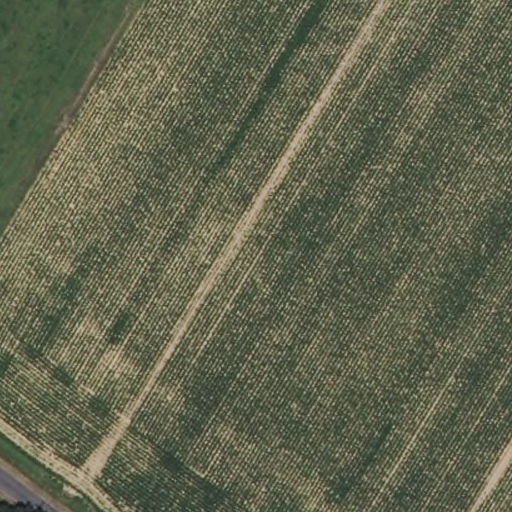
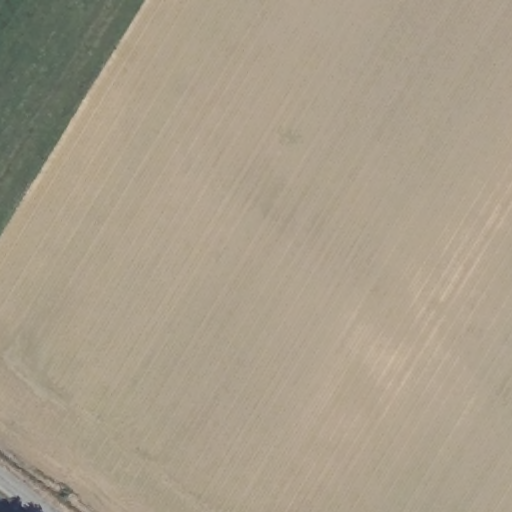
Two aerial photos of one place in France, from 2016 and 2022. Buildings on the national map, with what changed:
[]

